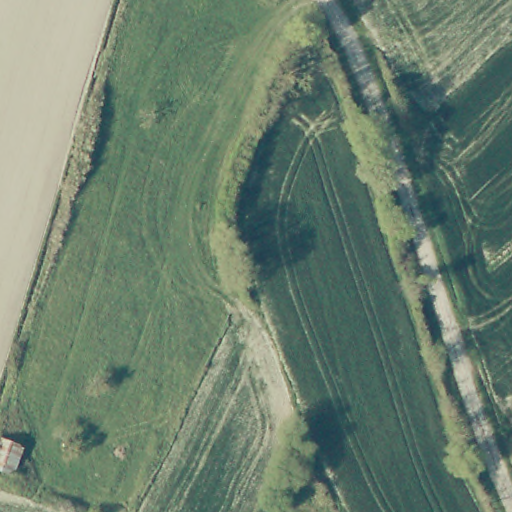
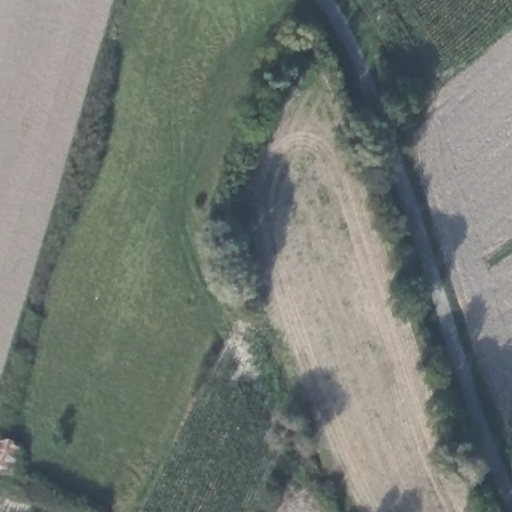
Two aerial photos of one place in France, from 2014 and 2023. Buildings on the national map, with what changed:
unchanged [(16,478),(0,471),(0,441),(1,439),(29,449),(16,478)]

